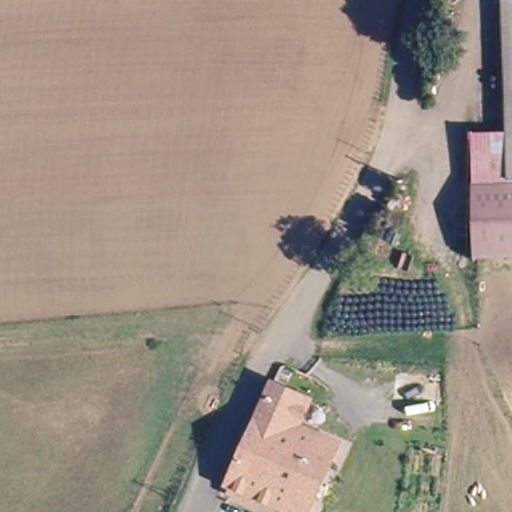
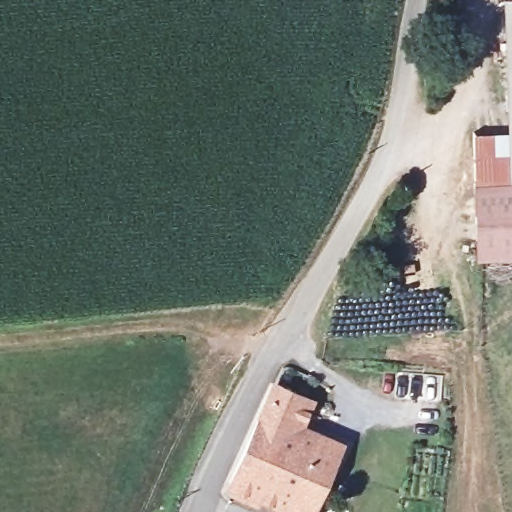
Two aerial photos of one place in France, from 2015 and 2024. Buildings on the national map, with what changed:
unchanged [(473,183),(509,181),(505,115),(499,0),(512,0),(512,256),(476,258),(473,183)]
unchanged [(509,181),(473,183),(471,133),(471,126),(505,115),(509,181)]
unchanged [(330,443),(300,512),(297,512),(225,485),(271,387),(318,412),(311,433),(330,443)]

